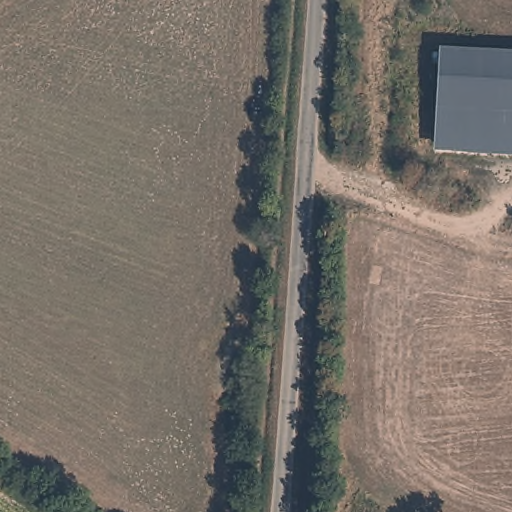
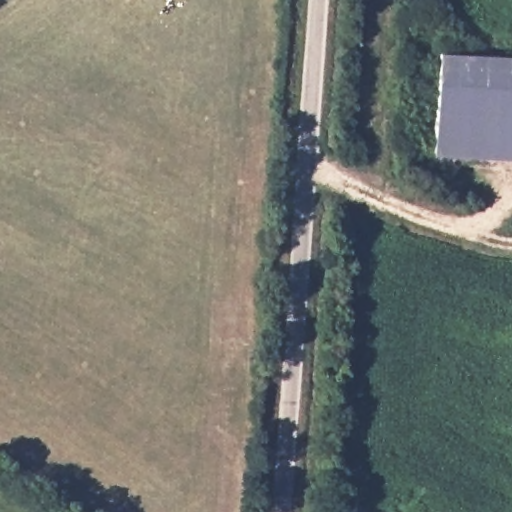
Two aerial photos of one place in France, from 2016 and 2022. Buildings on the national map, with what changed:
unchanged [(512,61),(512,152),(434,150),(436,59),(512,61)]

